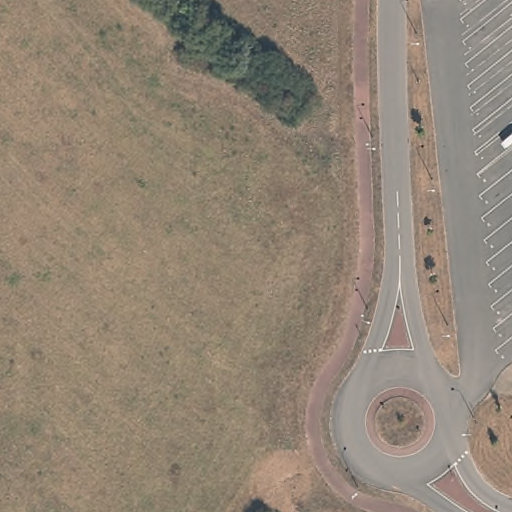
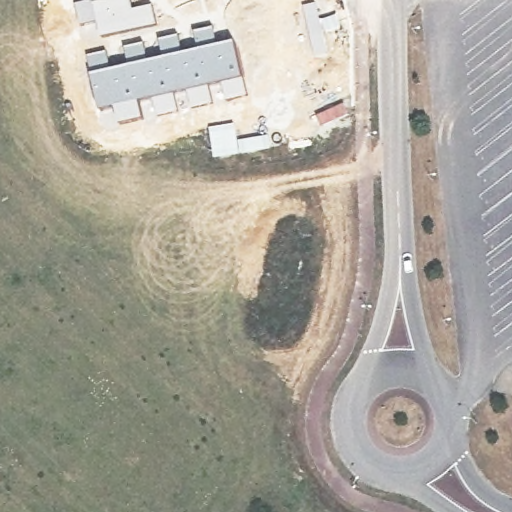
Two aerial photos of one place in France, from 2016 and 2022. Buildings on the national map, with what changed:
new [(133,7),(152,2),(157,25),(97,39),(95,25),(78,27),(75,4),(85,0),(133,0),(133,7)]
new [(108,51),(110,66),(128,64),(121,47),(143,42),(146,58),(164,55),(158,38),(175,35),(182,52),(195,49),(194,31),(213,25),(219,40),(234,38),(247,96),(228,101),(222,81),(209,85),(213,102),(195,109),(187,91),(176,93),(180,111),(157,115),(152,99),(137,103),(142,121),(115,125),(111,109),(98,112),(84,56),(108,51)]

